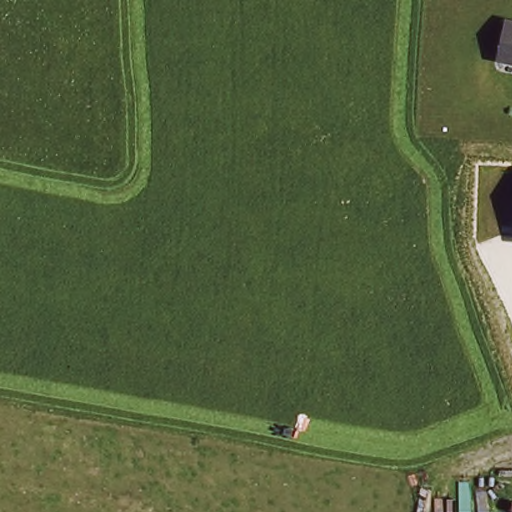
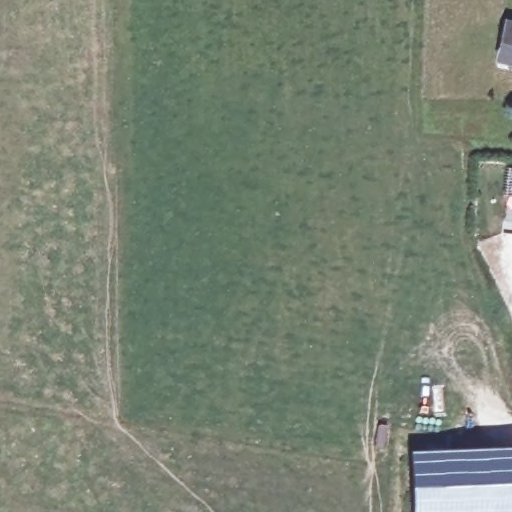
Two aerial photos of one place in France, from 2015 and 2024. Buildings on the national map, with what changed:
unchanged [(487,54),(497,17),(512,21),(512,60),(487,54)]
new [(411,512),(408,452),(512,448),(512,512),(411,512)]

